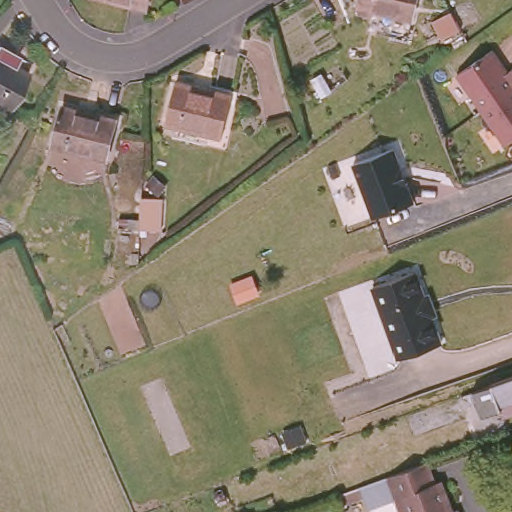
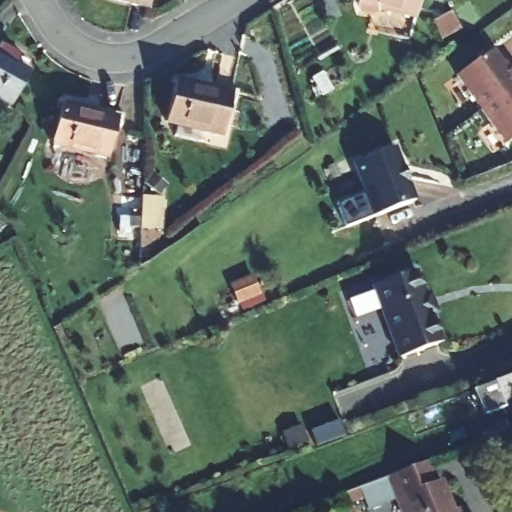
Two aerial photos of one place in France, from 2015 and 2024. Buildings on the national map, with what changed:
unchanged [(108,0),(148,0),(146,9),(108,0)]
unchanged [(359,6),(361,0),(418,0),(413,20),(359,6)]
unchanged [(457,19),(467,14),(472,24),(462,30),(450,36),(445,26),(457,19)]
unchanged [(452,73),(495,43),(512,69),(512,140),(505,145),(452,73)]
unchanged [(12,66),(29,75),(10,110),(0,105),(0,47),(17,56),(12,66)]
unchanged [(222,136),(168,124),(177,84),(195,88),(215,92),(231,96),(222,136)]
unchanged [(111,158),(55,147),(63,108),(81,111),(102,115),(119,119),(111,158)]
unchanged [(352,164),(395,147),(415,201),(372,217),(352,164)]
unchanged [(399,360),(372,289),(414,273),(423,297),(428,295),(435,314),(430,317),(441,344),(399,360)]
unchanged [(500,422),(499,415),(481,422),(472,398),(512,383),(512,417),(500,422)]
unchanged [(390,474),(427,460),(434,480),(443,477),(456,512),(406,512),(390,474)]

